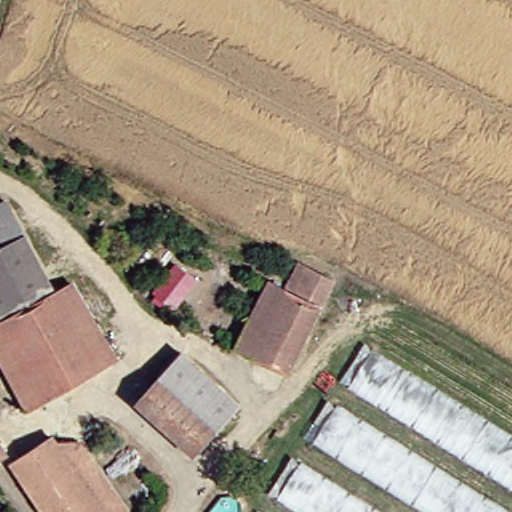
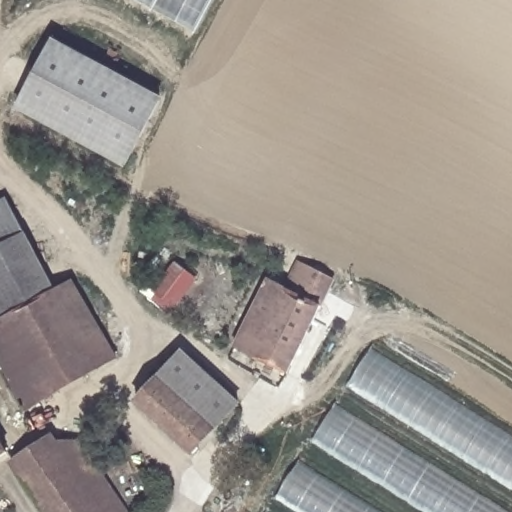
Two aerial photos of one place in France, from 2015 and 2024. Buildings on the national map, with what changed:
new [(131,0),(213,0),(195,36),(131,0)]
new [(124,168),(15,110),(53,41),(162,99),(124,168)]
unchanged [(0,240),(0,215),(11,233),(0,240)]
unchanged [(20,246),(46,289),(0,317),(0,240),(11,233),(20,246)]
unchanged [(187,296),(170,287),(174,276),(165,271),(175,250),(186,256),(205,266),(187,296)]
unchanged [(328,282),(279,372),(231,342),(266,282),(280,290),(288,273),(293,263),(328,282)]
unchanged [(61,279),(109,353),(26,406),(0,365),(0,317),(46,289),(61,279)]
unchanged [(361,346),(512,440),(512,489),(337,379),(361,346)]
new [(243,404),(193,459),(131,404),(182,351),(243,404)]
demolished [(209,427),(189,451),(129,404),(151,380),(209,427)]
unchanged [(325,399),(502,512),(425,512),(302,434),(325,399)]
unchanged [(5,463),(51,437),(61,453),(17,481),(5,463)]
unchanged [(61,453),(51,437),(78,443),(119,512),(97,512),(61,453)]
unchanged [(17,481),(61,453),(97,512),(38,512),(17,481)]
unchanged [(0,458),(0,454),(2,457),(0,458)]
unchanged [(292,458),(376,512),(304,512),(269,490),(292,458)]

